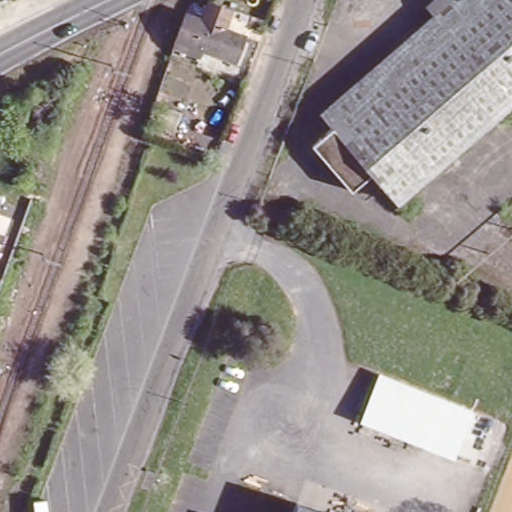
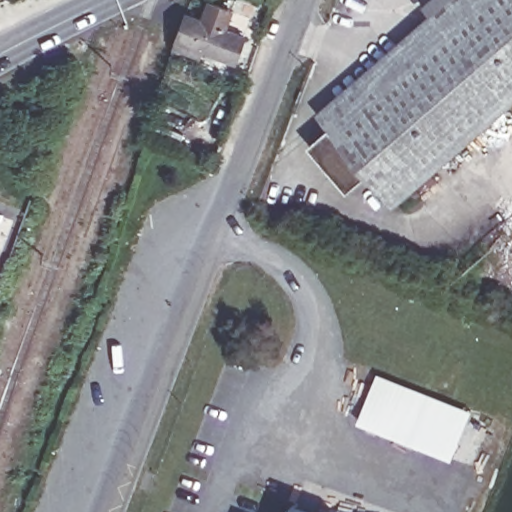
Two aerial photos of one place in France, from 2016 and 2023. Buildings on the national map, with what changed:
unchanged [(317,120),(435,19),(427,11),(440,0),(512,0),(512,109),(400,210),(379,186),(332,133),(317,120)]
unchanged [(207,1),(230,9),(212,58),(198,53),(192,70),(180,66),(185,49),(174,44),(184,16),(200,21),(207,1)]
unchanged [(230,54),(236,35),(246,38),(249,30),(259,35),(243,76),(233,73),(238,56),(230,54)]
unchanged [(357,205),(311,153),(332,133),(379,186),(357,205)]
unchanged [(454,460),(358,424),(377,372),(473,408),(454,460)]
unchanged [(295,503),(319,512),(292,512),(295,503)]

